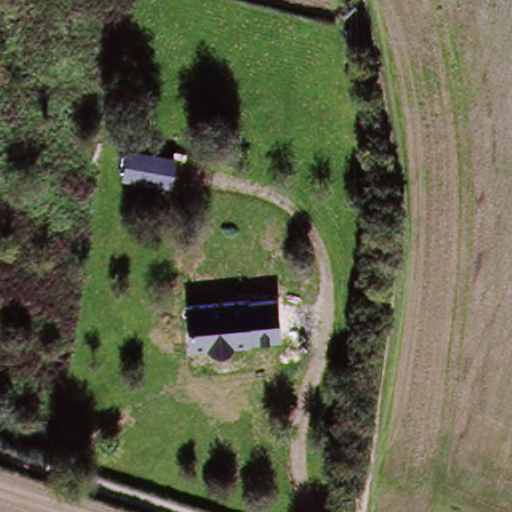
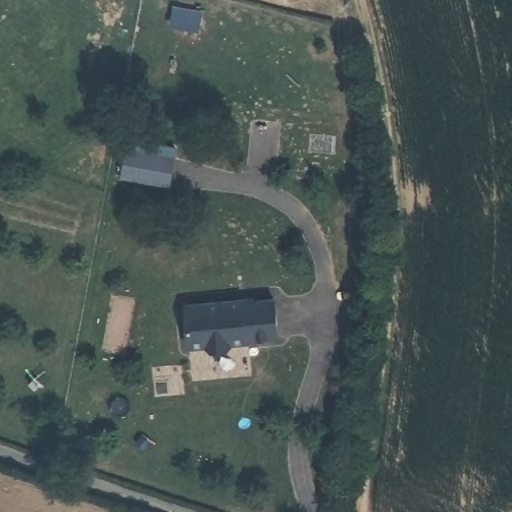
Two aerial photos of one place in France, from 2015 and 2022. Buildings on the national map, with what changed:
unchanged [(125,161),(210,169),(208,190),(124,183),(125,161)]
unchanged [(186,308),(276,300),(279,335),(189,345),(186,308)]

